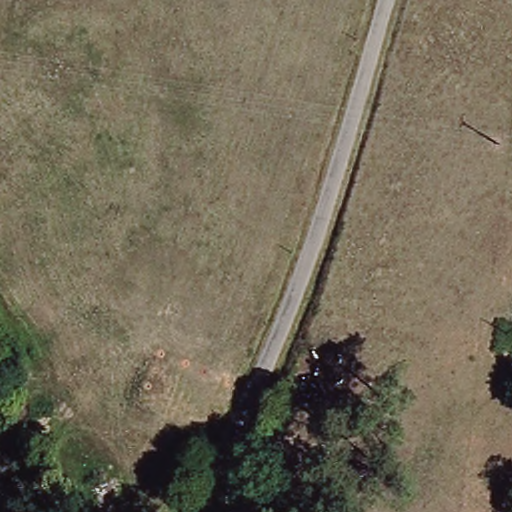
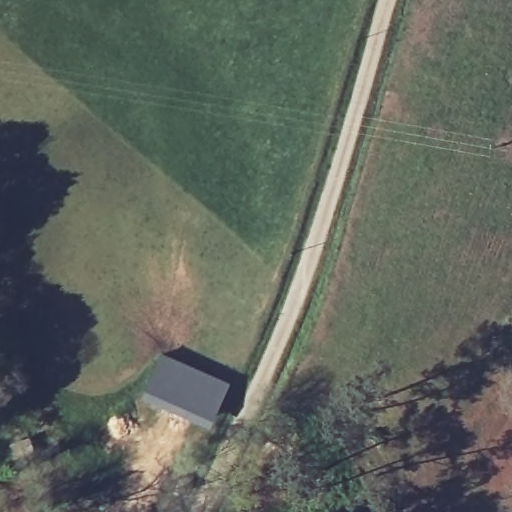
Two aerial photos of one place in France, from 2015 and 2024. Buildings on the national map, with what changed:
new [(158,351),(231,382),(211,427),(138,397),(158,351)]

